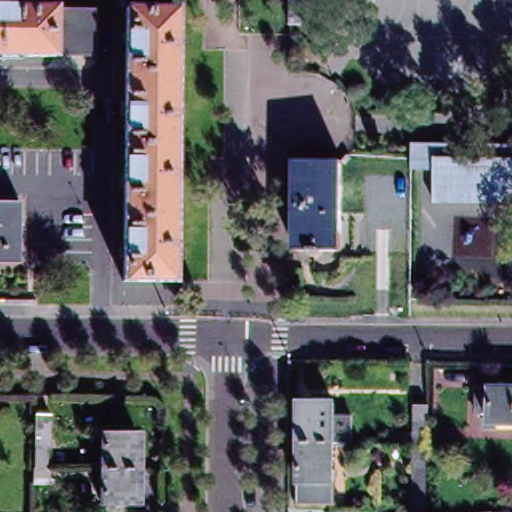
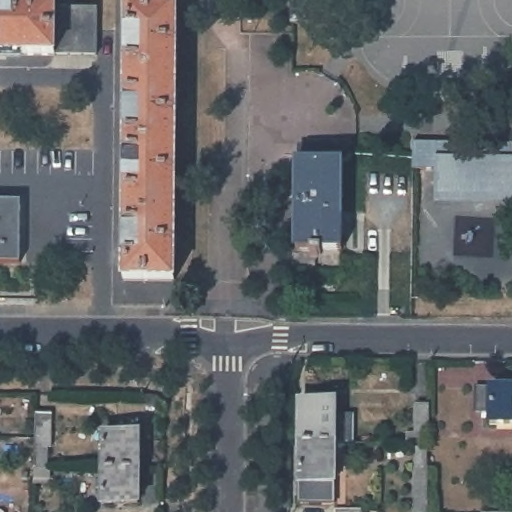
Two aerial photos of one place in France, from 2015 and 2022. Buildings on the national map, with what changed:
unchanged [(328,27),(291,27),(291,11),(291,0),(328,0),(328,27)]
unchanged [(56,10),(55,58),(0,57),(0,9),(56,10)]
unchanged [(99,10),(98,59),(55,58),(56,10),(99,10)]
unchanged [(127,65),(127,11),(176,11),(176,65),(127,65)]
unchanged [(175,146),(126,146),(127,65),(176,65),(175,146)]
unchanged [(434,167),(412,167),(412,142),(435,142),(512,144),(512,198),(434,197),(434,167)]
unchanged [(175,213),(126,213),(126,146),(175,146),(175,213)]
unchanged [(318,257),(318,258),(310,258),(310,252),(295,252),(296,162),(341,164),(343,164),(342,198),(342,206),(341,251),(341,253),(336,252),(320,252),(320,257),(318,257)]
unchanged [(22,204),(21,266),(0,266),(0,203),(22,204)]
unchanged [(175,282),(125,282),(126,213),(175,213),(175,282)]
unchanged [(495,416),(477,416),(477,391),(477,389),(495,389),(512,389),(512,427),(495,427),(495,416)]
unchanged [(300,399),(335,399),(335,441),(299,440),(300,399)]
unchanged [(405,434),(415,434),(415,423),(415,406),(428,406),(428,423),(428,445),(415,445),(405,445),(405,434)]
unchanged [(50,486),(35,486),(35,471),(36,450),(36,415),(49,415),(49,450),(49,471),(51,471),(50,486)]
unchanged [(104,437),(140,437),(140,472),(103,471),(104,437)]
unchanged [(298,500),(298,480),(299,440),(335,441),(335,481),(335,500),(298,500)]
unchanged [(414,512),(415,447),(429,447),(428,512),(414,512)]
unchanged [(140,472),(140,506),(103,506),(103,471),(140,472)]
unchanged [(365,507),(365,512),(335,512),(335,507),(365,507)]

